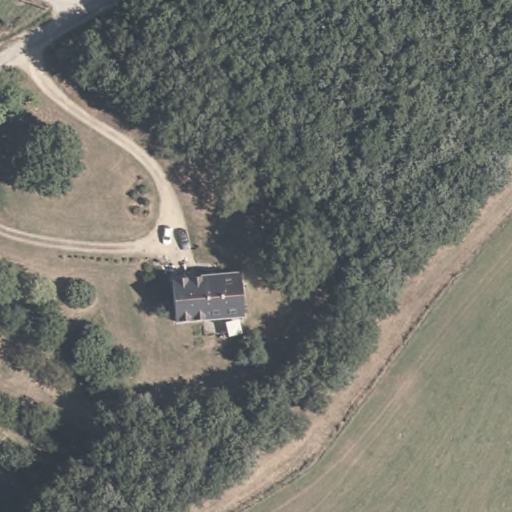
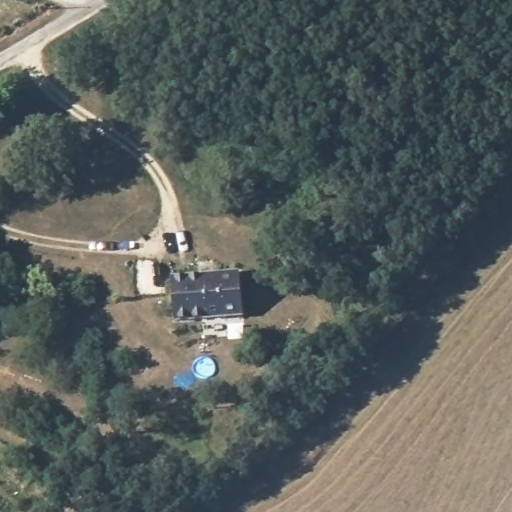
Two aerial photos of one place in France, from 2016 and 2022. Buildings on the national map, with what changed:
unchanged [(245,313),(178,317),(176,274),(244,269),(245,313)]

